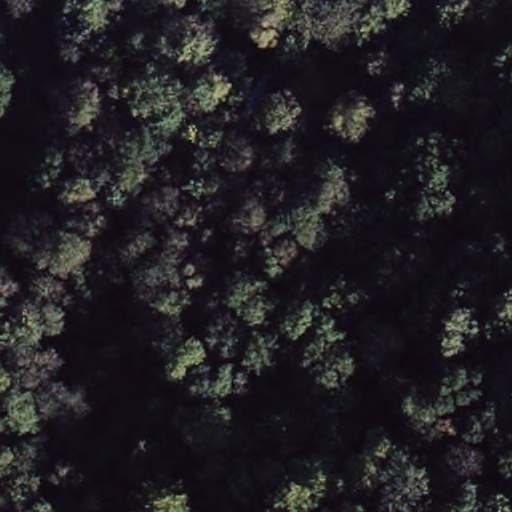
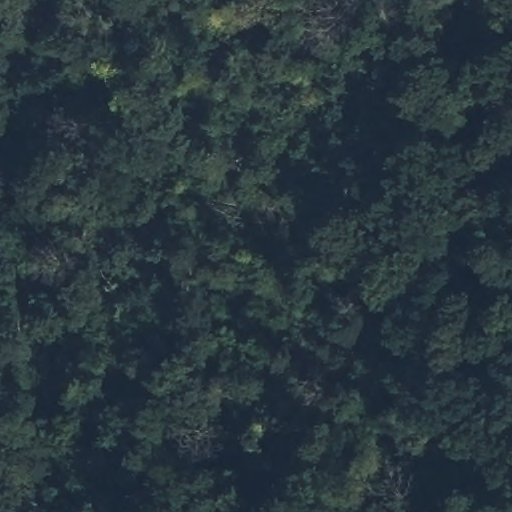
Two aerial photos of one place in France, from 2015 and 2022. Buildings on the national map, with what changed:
[]

